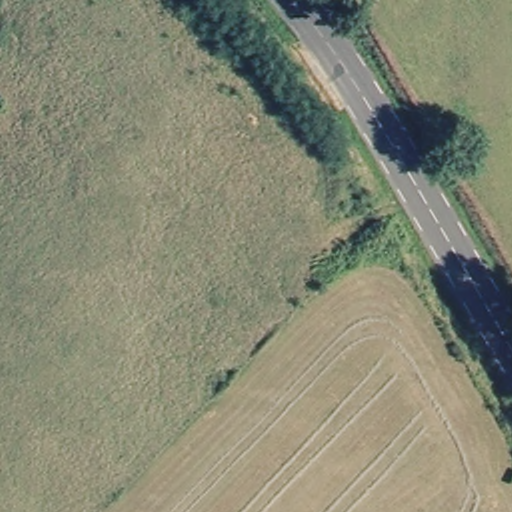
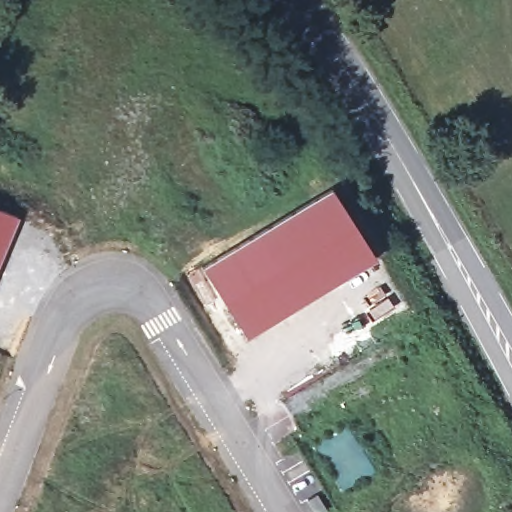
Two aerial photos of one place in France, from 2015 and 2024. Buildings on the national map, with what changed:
new [(330,186),(375,257),(246,338),(201,268),(330,186)]
new [(19,217),(0,263),(0,209),(19,217)]

